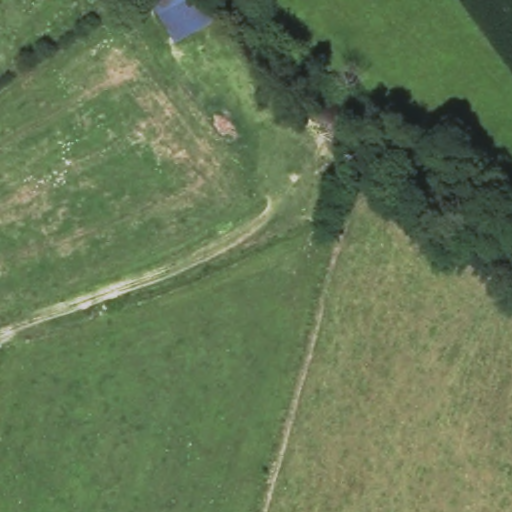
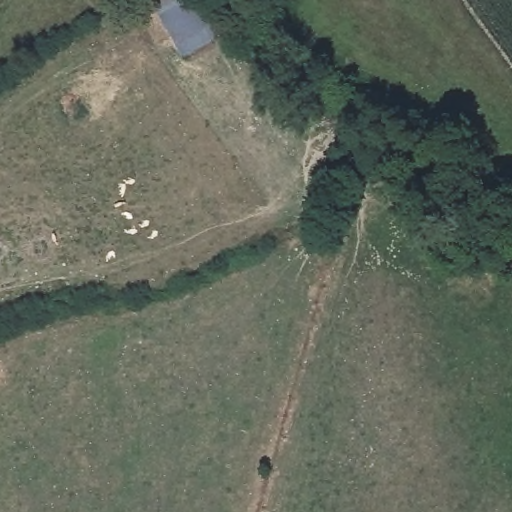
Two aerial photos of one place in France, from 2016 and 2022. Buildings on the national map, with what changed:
unchanged [(156,0),(209,0),(220,22),(179,40),(156,0)]

